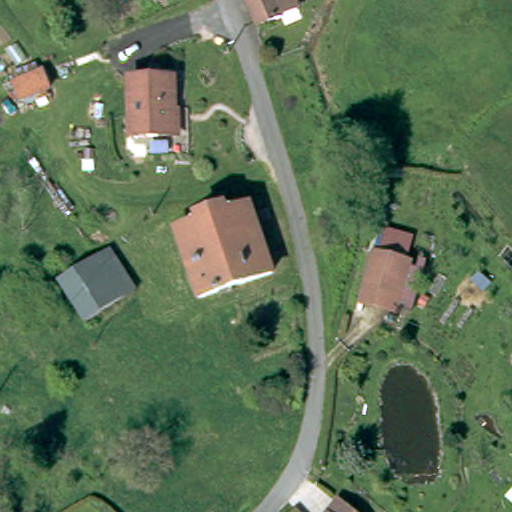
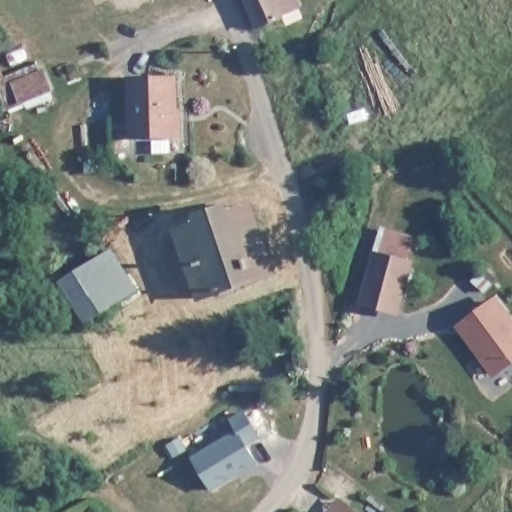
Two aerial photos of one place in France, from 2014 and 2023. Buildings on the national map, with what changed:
unchanged [(284,20),(260,30),(247,0),(274,0),(282,17),(284,20)]
unchanged [(300,9),(297,11),(290,13),(282,17),(274,0),(296,0),(300,9)]
new [(37,72),(45,89),(18,100),(10,83),(37,72)]
unchanged [(132,88),(179,86),(180,144),(132,146),(132,88)]
unchanged [(182,237),(254,212),(278,280),(206,304),(182,237)]
unchanged [(57,284),(105,253),(131,294),(83,325),(57,284)]
unchanged [(407,270),(397,315),(365,307),(375,262),(407,270)]
new [(512,320),(512,365),(494,379),(455,330),(496,299),(512,320)]
new [(238,429),(232,418),(245,410),(259,434),(245,442),(257,460),(212,487),(193,456),(238,429)]
unchanged [(352,512),(329,512),(338,500),(352,512)]

